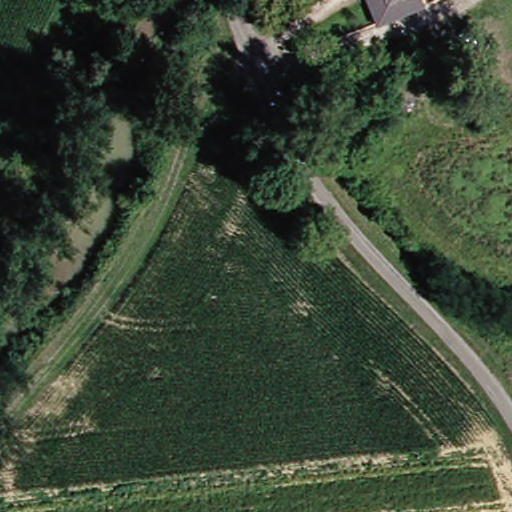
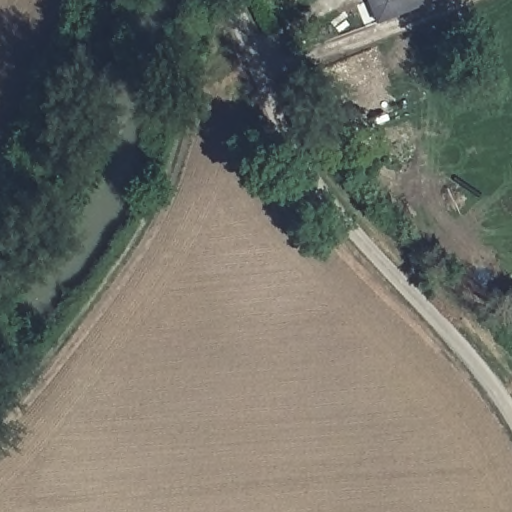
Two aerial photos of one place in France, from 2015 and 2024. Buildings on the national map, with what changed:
unchanged [(380,0),(386,0),(381,2),(380,0)]
unchanged [(316,68),(364,48),(390,111),(342,130),(316,68)]

